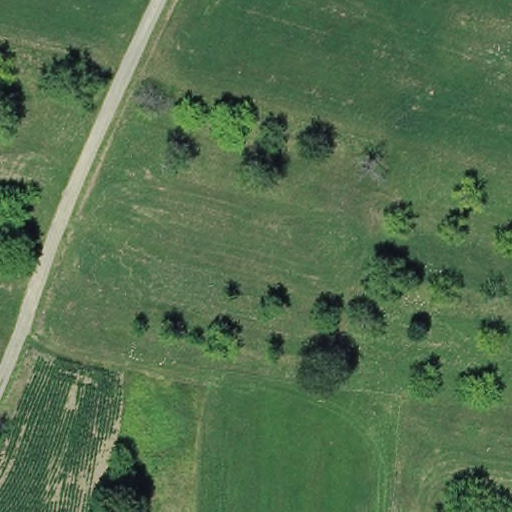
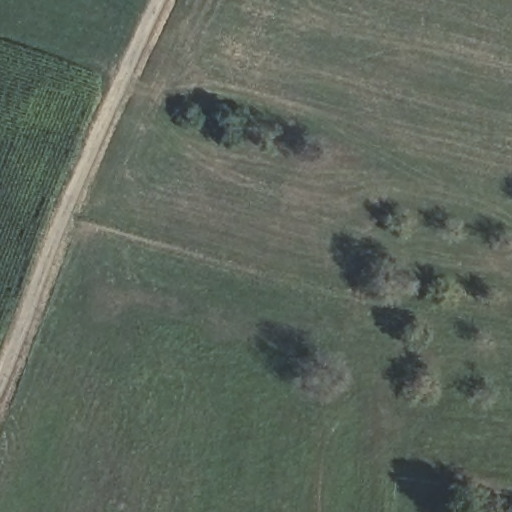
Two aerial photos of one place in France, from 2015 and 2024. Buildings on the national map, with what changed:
[]

